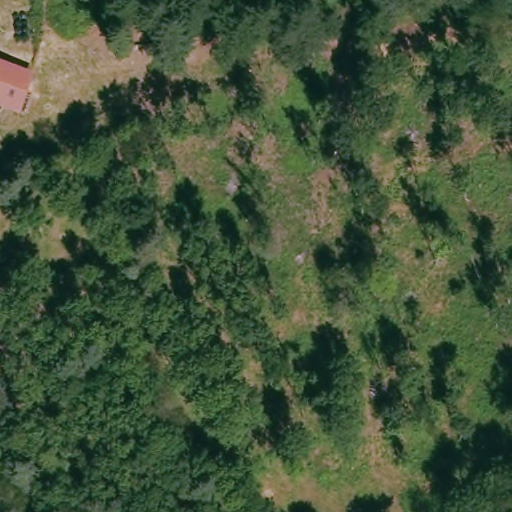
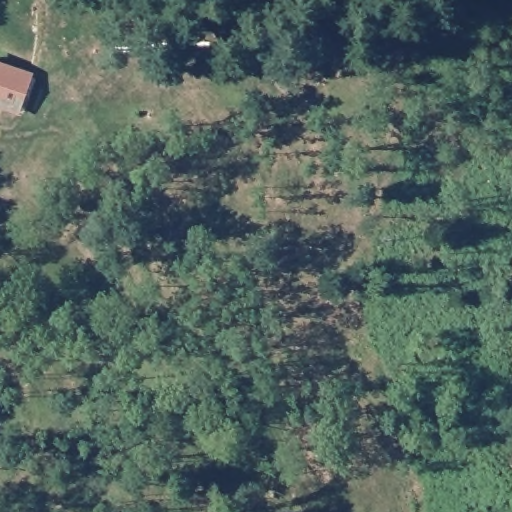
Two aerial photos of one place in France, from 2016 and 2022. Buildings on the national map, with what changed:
unchanged [(0,98),(0,61),(28,69),(15,101),(0,98)]

